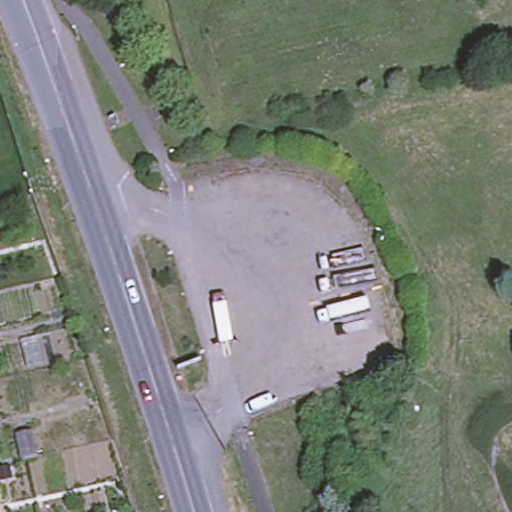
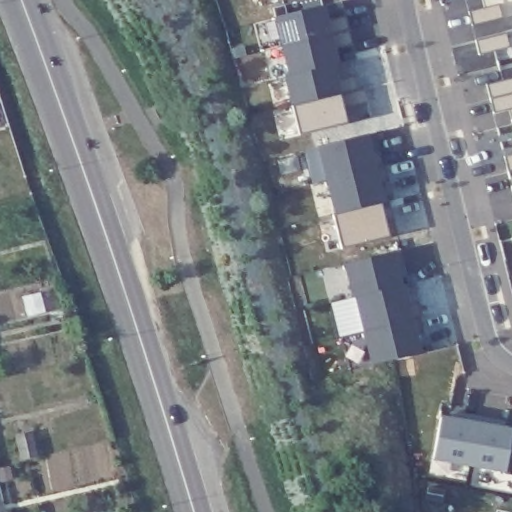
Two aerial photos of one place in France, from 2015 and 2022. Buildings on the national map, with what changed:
new [(328,6),(333,21),(348,19),(355,46),(339,51),(342,64),(336,66),(338,79),(357,78),(361,91),(340,96),(347,126),(301,136),(295,105),(290,105),(284,74),(288,73),(275,18),(275,9),(283,7),(282,1),(284,0),(320,0),(322,7),(328,6)]
new [(277,2),(277,0),(284,0),(282,1),(277,2)]
new [(500,6),(502,19),(471,26),(470,13),(500,6)]
new [(512,47),(512,49),(482,56),(478,43),(509,35),(512,47)]
new [(492,101),(489,86),(512,80),(512,111),(496,115),(492,101)]
new [(400,239),(344,253),(335,219),(338,218),(321,151),(377,137),(385,171),(388,170),(391,185),(396,204),(392,205),(396,224),(400,239)]
new [(505,156),(512,154),(512,171),(508,172),(505,156)]
new [(423,355),(398,361),(375,367),(358,300),(356,300),(347,267),(403,253),(406,268),(399,270),(404,289),(406,288),(416,286),(421,304),(425,319),(422,320),(426,334),(430,353),(423,355)]
new [(452,420),(453,415),(464,416),(480,419),(471,467),(436,460),(443,419),(452,420)]
new [(507,424),(506,430),(512,431),(512,448),(507,473),(471,467),(480,419),(497,422),(507,424)]
new [(26,469),(20,447),(33,444),(40,466),(26,469)]

